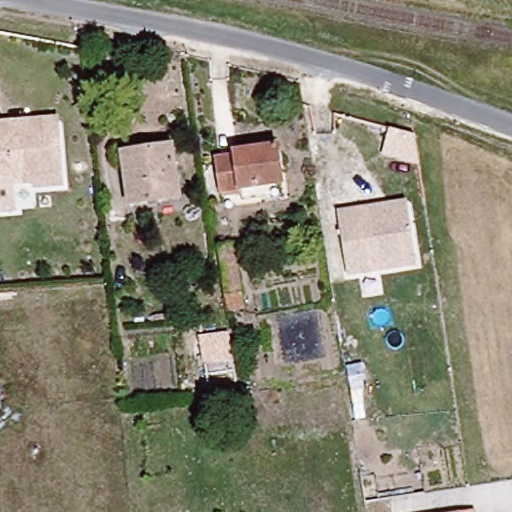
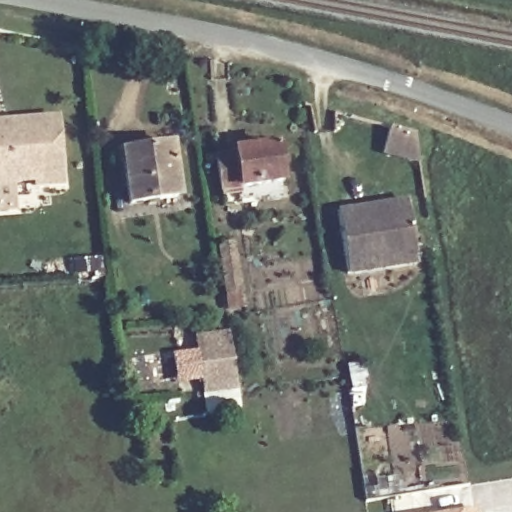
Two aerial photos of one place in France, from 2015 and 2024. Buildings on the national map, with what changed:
unchanged [(58,130),(0,133),(0,119),(57,116),(58,130)]
unchanged [(58,130),(62,184),(33,185),(33,180),(0,182),(0,133),(58,130)]
unchanged [(219,154),(276,143),(281,180),(243,186),(244,199),(226,202),(224,188),(219,154)]
unchanged [(176,195),(126,201),(119,151),(170,145),(176,195)]
unchanged [(337,208),(407,198),(415,265),(346,276),(337,208)]
unchanged [(230,304),(222,255),(240,253),(246,301),(230,304)]
new [(230,329),(239,400),(204,405),(194,335),(230,329)]

